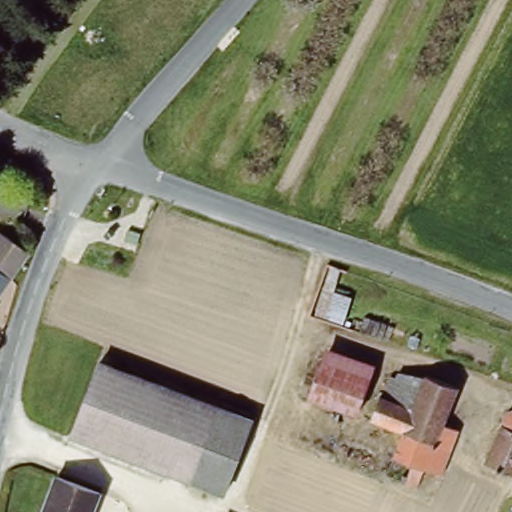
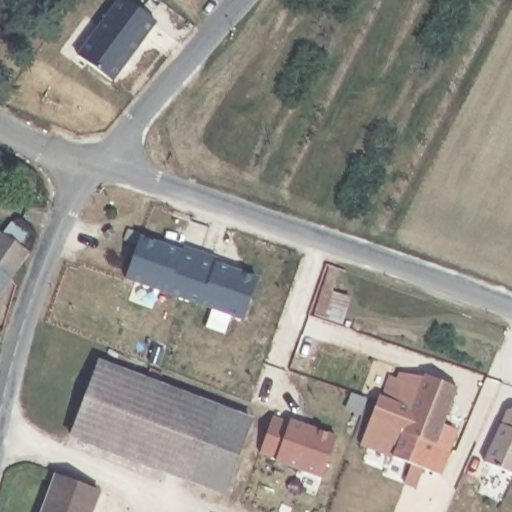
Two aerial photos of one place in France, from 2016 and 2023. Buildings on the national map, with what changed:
new [(75,55),(117,0),(127,0),(157,23),(112,83),(75,55)]
unchanged [(6,239),(31,257),(0,301),(0,234),(6,239)]
new [(244,320),(123,279),(139,234),(181,249),(184,245),(219,257),(217,260),(257,279),(244,320)]
unchanged [(342,268),(335,291),(352,297),(343,324),(310,313),(327,263),(342,268)]
unchanged [(102,366),(255,423),(228,497),(75,440),(102,366)]
unchanged [(406,439),(372,427),(382,402),(386,404),(395,382),(399,384),(402,377),(427,383),(459,396),(446,427),(460,433),(441,481),(424,474),(417,494),(402,488),(405,478),(410,480),(415,470),(397,463),(406,439)]
unchanged [(483,459),(508,405),(512,406),(512,404),(512,476),(510,476),(483,459)]
new [(323,479),(273,462),(274,460),(257,454),(271,414),(288,422),(290,418),(337,437),(323,479)]
unchanged [(99,500),(95,512),(43,512),(55,483),(99,500)]

